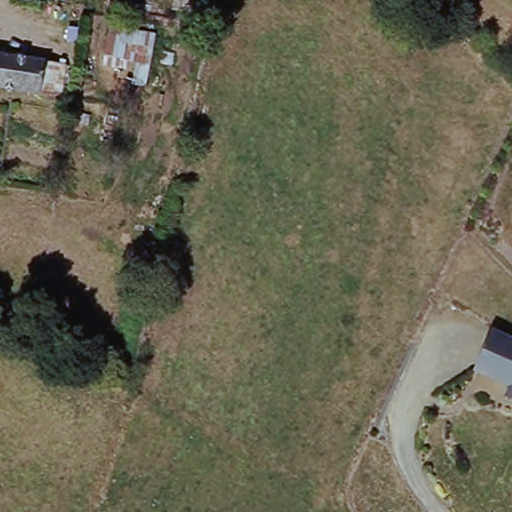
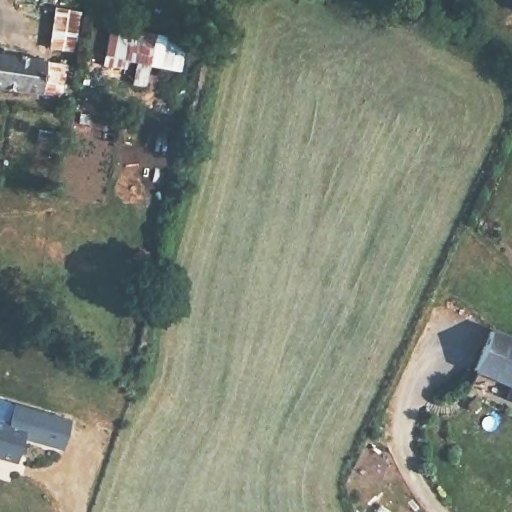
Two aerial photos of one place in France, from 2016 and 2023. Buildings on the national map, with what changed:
unchanged [(512,0),(512,4),(508,0),(512,0)]
unchanged [(71,63),(65,96),(0,87),(0,50),(71,63)]
unchanged [(512,401),(501,397),(505,386),(473,371),(495,327),(512,335),(512,401)]
new [(68,417),(60,447),(20,436),(13,460),(0,456),(0,398),(68,417)]

